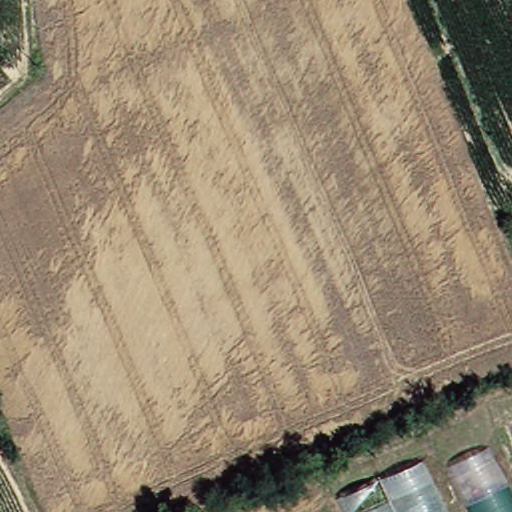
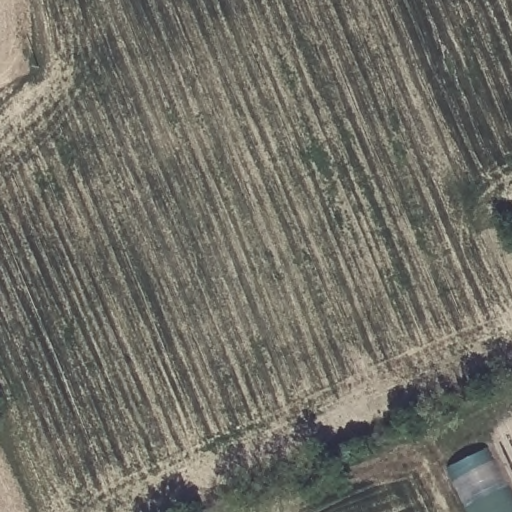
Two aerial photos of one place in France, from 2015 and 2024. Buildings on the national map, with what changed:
unchanged [(512,490),(512,512),(473,512),(450,463),(491,445),(512,490)]
demolished [(446,512),(351,512),(342,491),(421,460),(446,512)]

